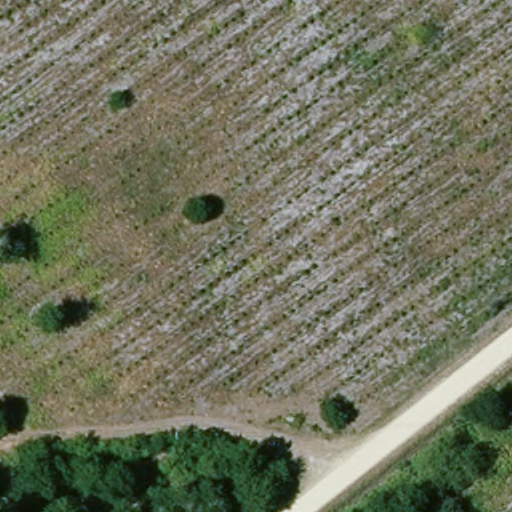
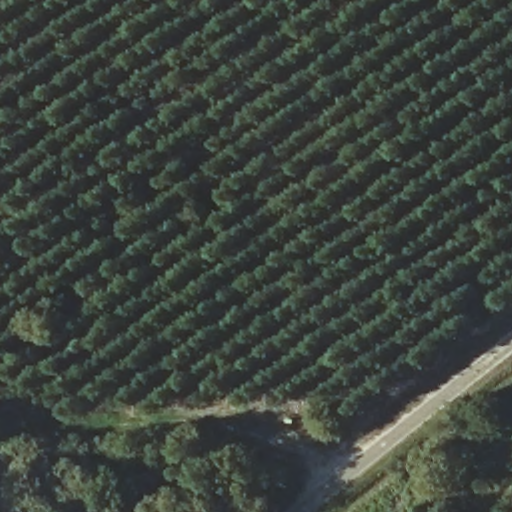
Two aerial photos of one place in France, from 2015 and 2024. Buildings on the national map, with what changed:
[]

